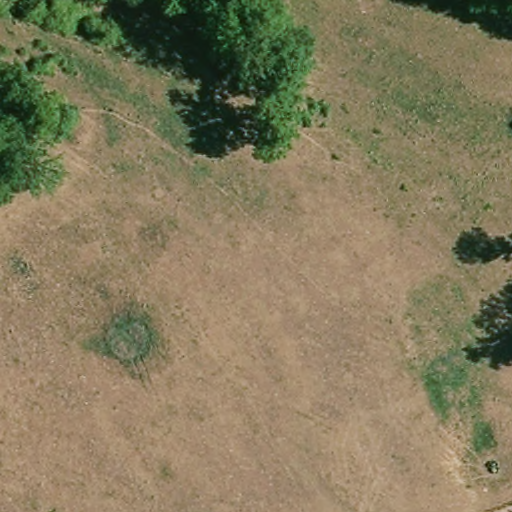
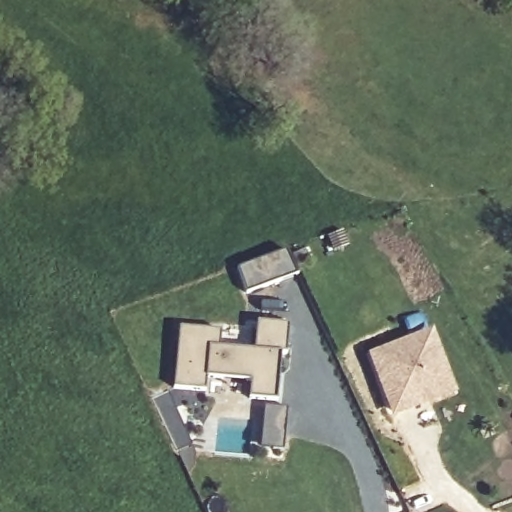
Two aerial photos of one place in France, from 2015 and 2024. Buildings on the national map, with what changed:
new [(245,293),(237,270),(287,253),(295,276),(245,293)]
new [(287,358),(283,358),(278,403),(250,400),(252,383),(207,378),(206,390),(173,387),(180,327),(222,331),(221,346),(255,350),(257,322),(290,325),(287,358)]
new [(458,395),(394,418),(370,354),(433,330),(458,395)]

